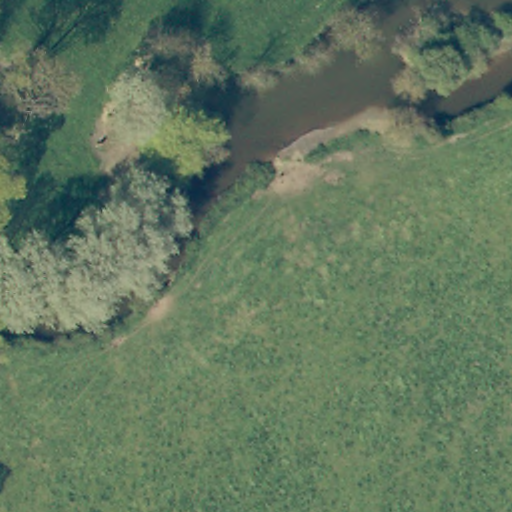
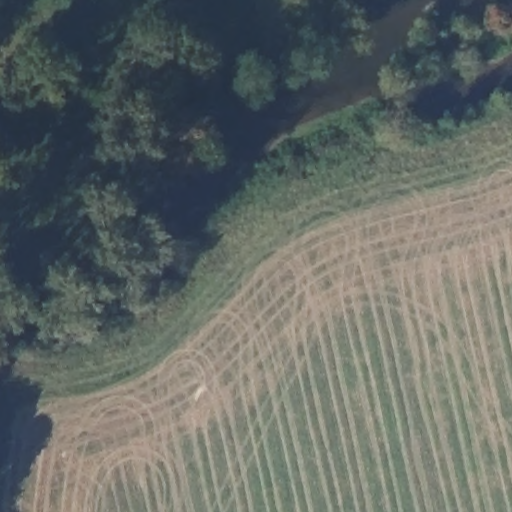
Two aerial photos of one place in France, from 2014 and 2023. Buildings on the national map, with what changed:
[]

